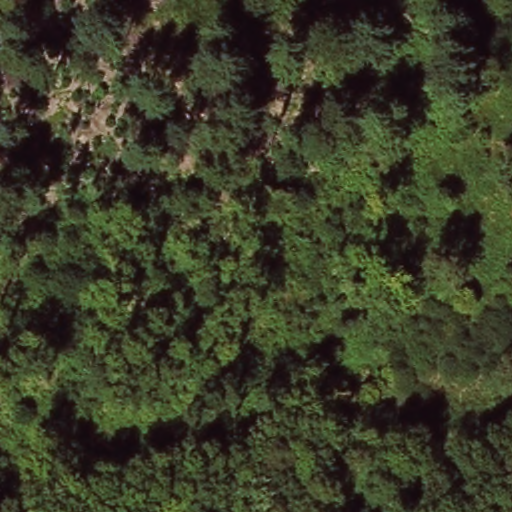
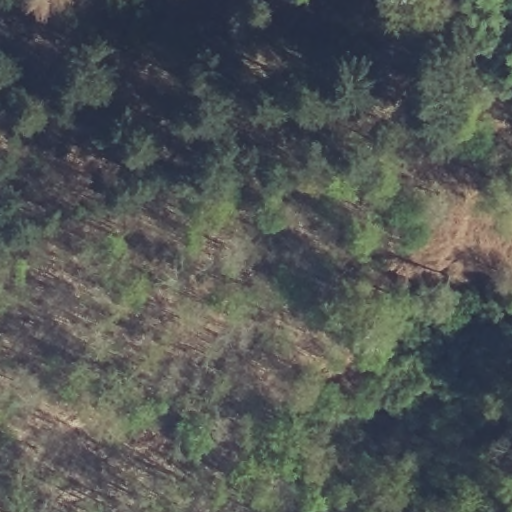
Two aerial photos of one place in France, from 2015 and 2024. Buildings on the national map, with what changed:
[]

